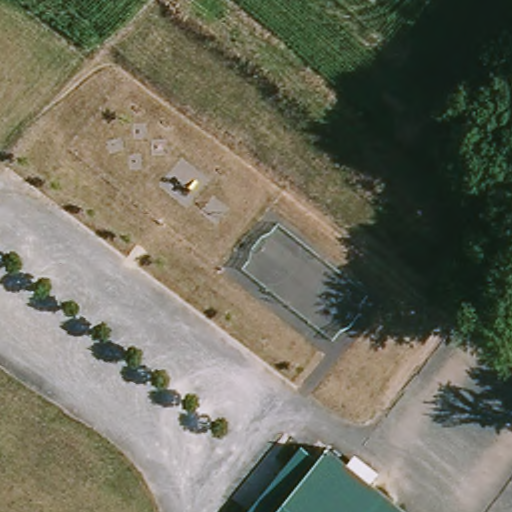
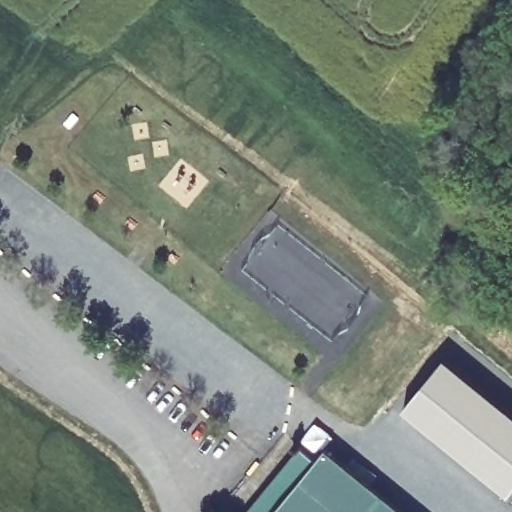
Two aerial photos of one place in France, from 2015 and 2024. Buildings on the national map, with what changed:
new [(512,414),(512,491),(507,497),(401,407),(445,356),(512,414)]
unchanged [(271,512),(244,512),(295,448),(311,461),(271,512)]
unchanged [(395,512),(271,512),(311,461),(318,452),(395,512)]

